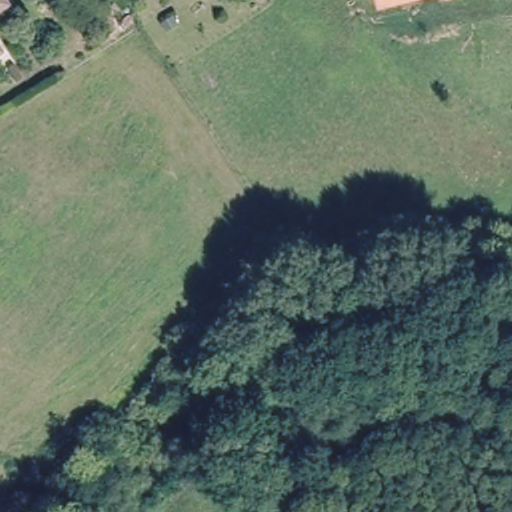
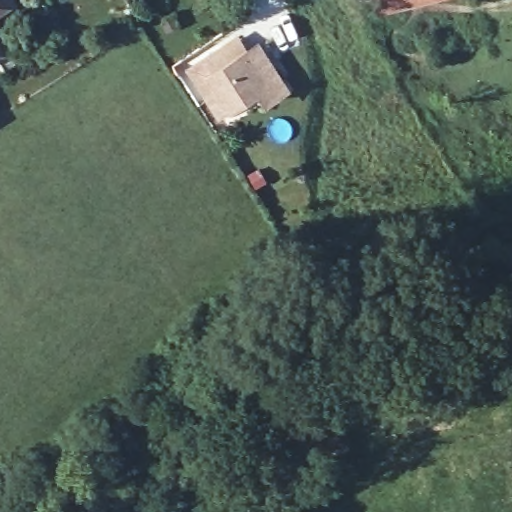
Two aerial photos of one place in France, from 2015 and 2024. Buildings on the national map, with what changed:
unchanged [(9,0),(9,1),(0,6),(0,0),(9,0)]
unchanged [(384,0),(393,0),(385,2),(384,0)]
new [(211,99),(192,70),(224,50),(240,39),(249,52),(261,45),(289,88),(269,101),(262,89),(234,106),(222,115),(211,99)]
unchanged [(3,48),(0,50),(0,43),(3,48)]

